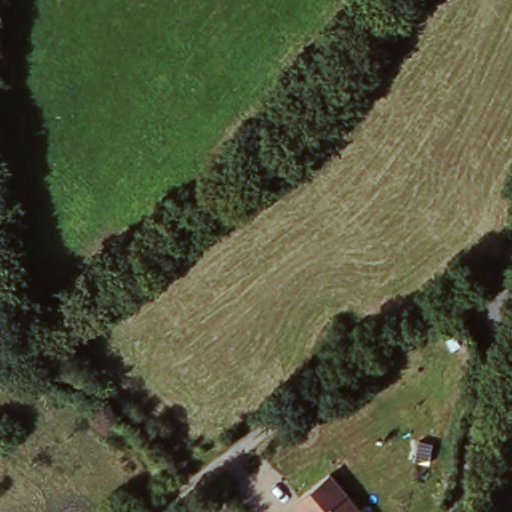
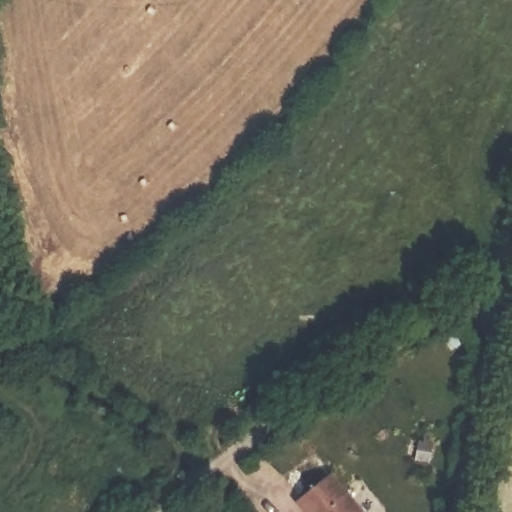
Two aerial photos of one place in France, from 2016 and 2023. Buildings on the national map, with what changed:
unchanged [(357,512),(297,512),(291,504),(327,473),(357,512)]

